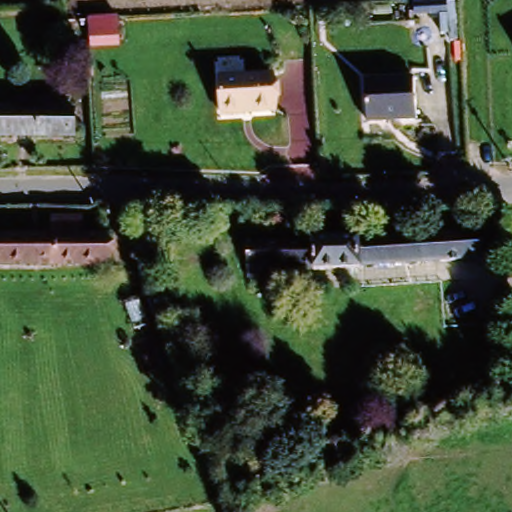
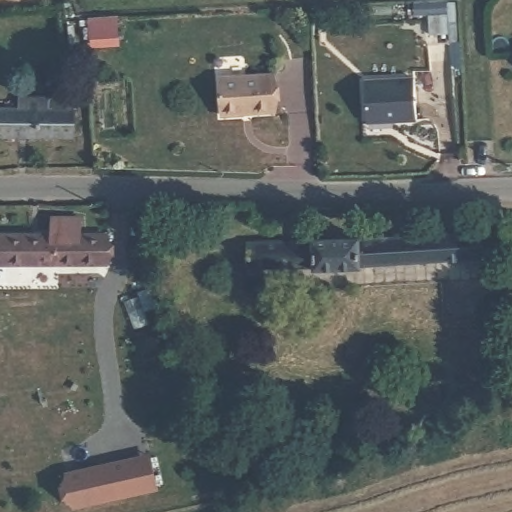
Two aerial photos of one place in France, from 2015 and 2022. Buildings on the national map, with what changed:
unchanged [(268,75),(270,112),(218,116),(215,79),(268,75)]
unchanged [(412,123),(363,125),(362,82),(411,81),(412,123)]
unchanged [(0,136),(0,109),(38,109),(38,98),(55,97),(57,109),(78,109),(79,134),(0,136)]
unchanged [(55,216),(80,216),(81,235),(107,237),(107,263),(0,262),(0,234),(52,235),(55,216)]
unchanged [(257,278),(245,277),(245,244),(310,245),(311,240),(356,239),(357,245),(477,235),(480,258),(358,268),(356,273),(312,274),(311,270),(257,270),(257,278)]
new [(158,489),(73,510),(64,498),(60,498),(57,486),(60,485),(66,471),(150,452),(158,489)]

